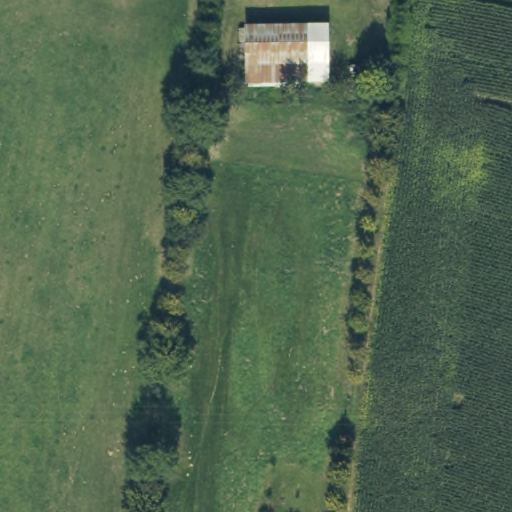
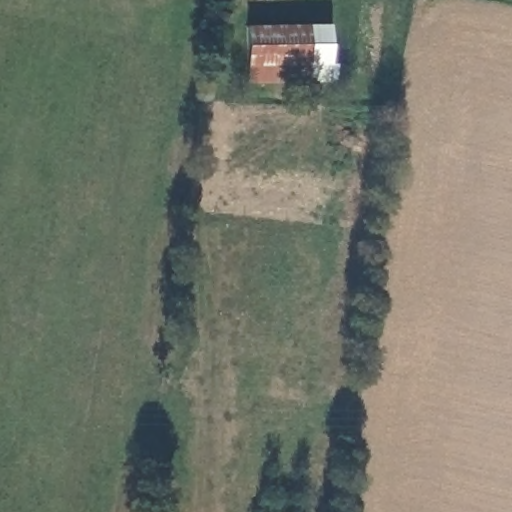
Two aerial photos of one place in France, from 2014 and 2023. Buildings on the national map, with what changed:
unchanged [(305,24),(306,78),(247,79),(246,25),(305,24)]

